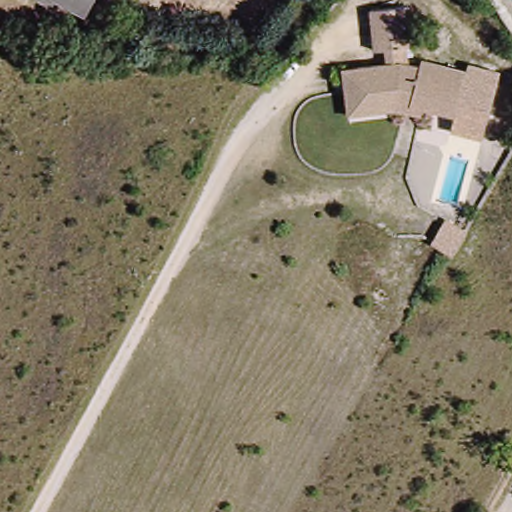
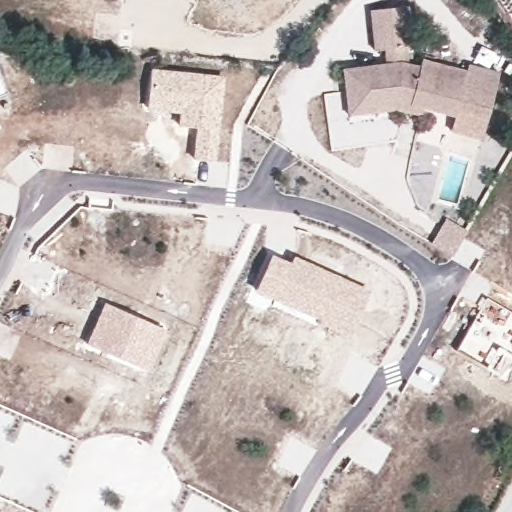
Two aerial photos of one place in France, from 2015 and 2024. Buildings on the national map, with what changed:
demolished [(93,0),(87,12),(62,0),(93,0)]
unchanged [(393,94),(363,96),(361,62),(386,59),(385,45),(375,43),(373,7),(412,5),(415,41),(401,42),(402,57),(420,59),(421,54),(466,67),(456,106),(435,102),(393,94)]
unchanged [(431,112),(395,102),(348,107),(345,64),(361,62),(363,96),(393,94),(435,102),(431,112)]
unchanged [(467,62),(500,70),(481,140),(450,133),(456,106),(466,67),(467,62)]
new [(150,67),(224,75),(220,126),(229,127),(225,162),(191,158),(195,127),(177,124),(179,112),(145,107),(150,67)]
new [(5,92),(0,94),(0,79),(5,92)]
new [(445,216),(465,227),(450,251),(431,240),(445,216)]
new [(270,253),(289,261),(293,254),(370,290),(346,335),(320,322),(253,289),(270,253)]
new [(512,355),(498,347),(486,367),(455,350),(486,298),(512,313),(512,355)]
new [(103,301),(166,328),(149,372),(85,342),(103,301)]

